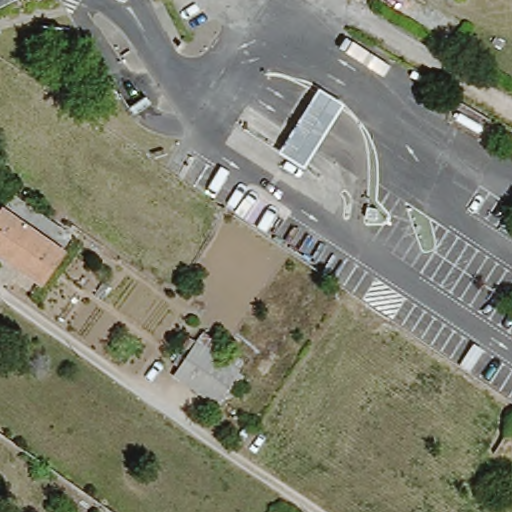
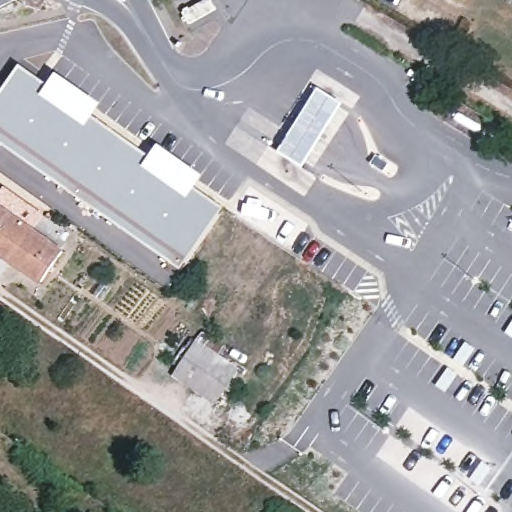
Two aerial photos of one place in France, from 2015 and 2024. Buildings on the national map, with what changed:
new [(183,11),(209,0),(214,12),(188,22),(183,11)]
new [(52,74),(96,102),(87,116),(150,157),(158,144),(202,172),(194,186),(221,204),(181,265),(0,145),(0,93),(17,69),(44,87),(52,74)]
unchanged [(337,110),(299,169),(277,155),(314,96),(337,110)]
new [(388,164),(383,172),(371,164),(377,155),(388,164)]
unchanged [(0,218),(4,220),(14,205),(35,220),(3,265),(0,263),(0,218)]
unchanged [(55,257),(34,286),(3,265),(35,220),(57,235),(46,250),(55,257)]
unchanged [(240,374),(213,408),(167,377),(192,346),(240,374)]

